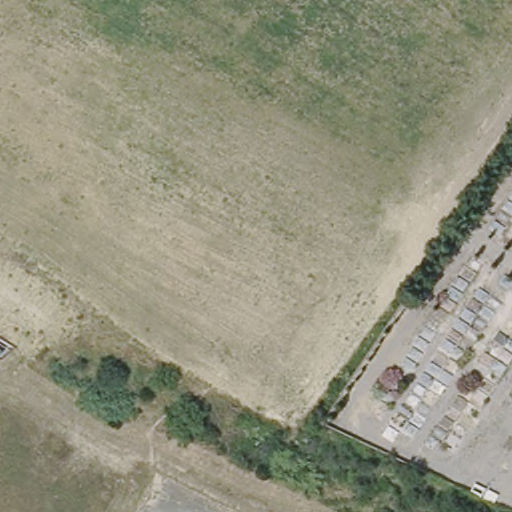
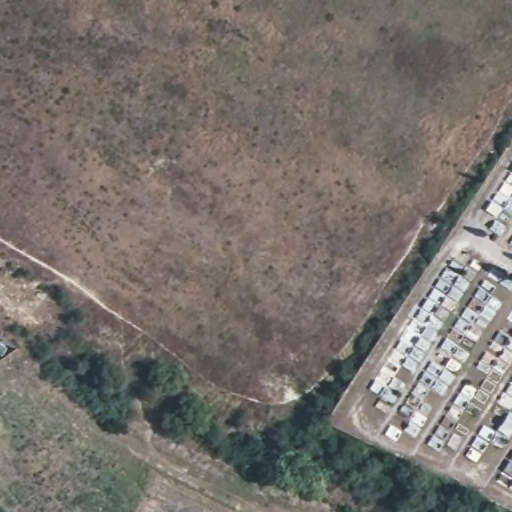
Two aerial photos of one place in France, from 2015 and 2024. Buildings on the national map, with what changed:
[]

